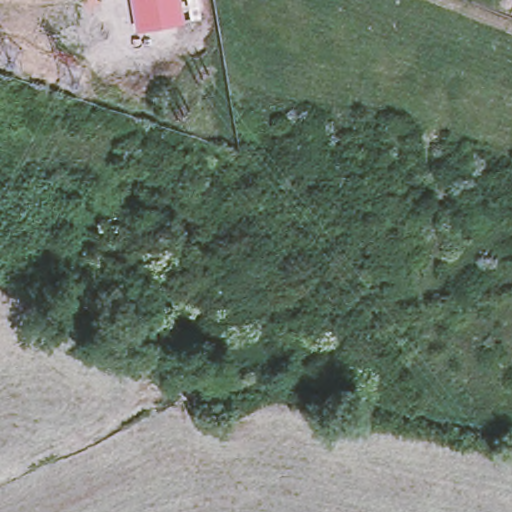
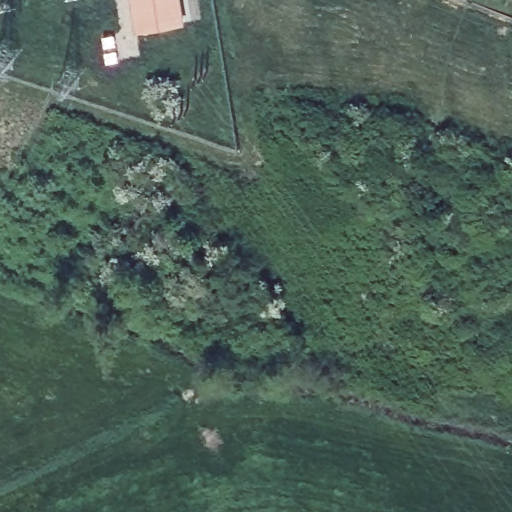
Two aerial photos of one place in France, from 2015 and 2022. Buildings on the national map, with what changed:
unchanged [(182,0),(186,24),(137,32),(131,0),(182,0)]

